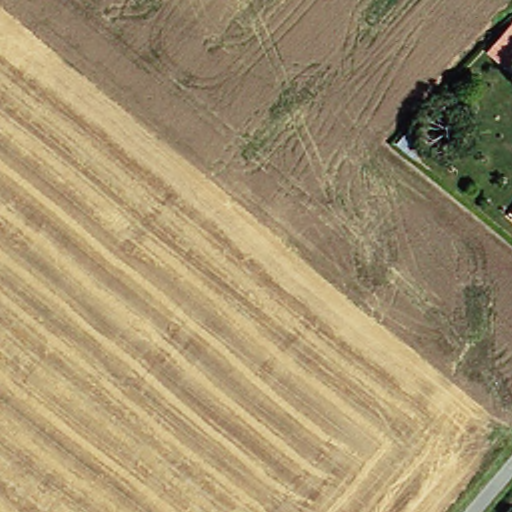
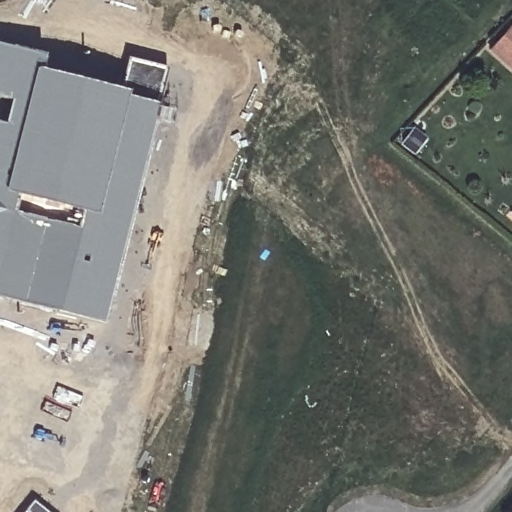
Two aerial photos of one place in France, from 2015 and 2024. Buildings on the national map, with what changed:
unchanged [(512,67),(491,52),(512,28),(512,67)]
new [(3,124),(9,99),(0,97),(0,44),(42,54),(38,69),(124,91),(123,97),(156,104),(102,323),(0,297),(0,123),(3,124)]
new [(165,69),(156,104),(123,97),(124,91),(129,59),(165,69)]
unchanged [(512,206),(512,207),(511,207),(512,206)]

